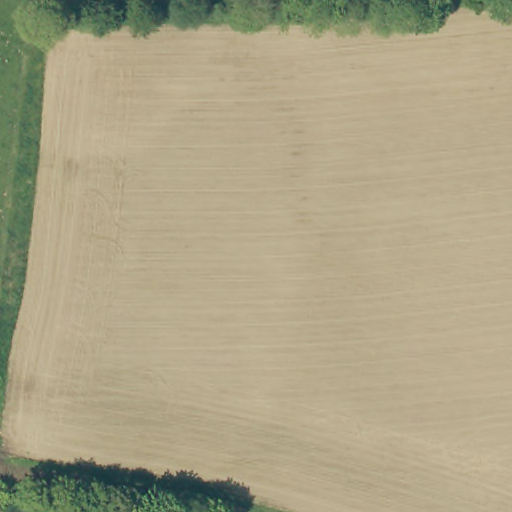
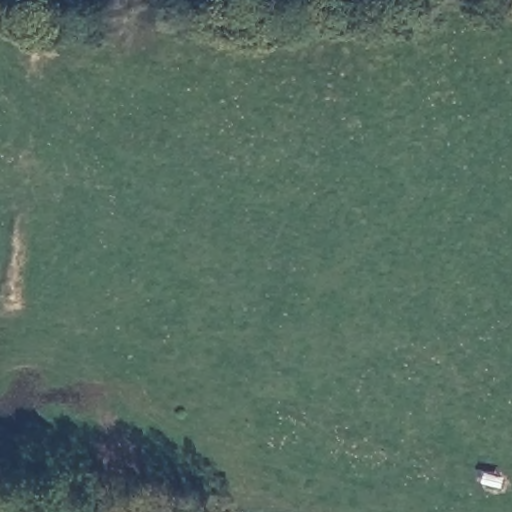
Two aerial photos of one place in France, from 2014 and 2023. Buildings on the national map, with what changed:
[]

